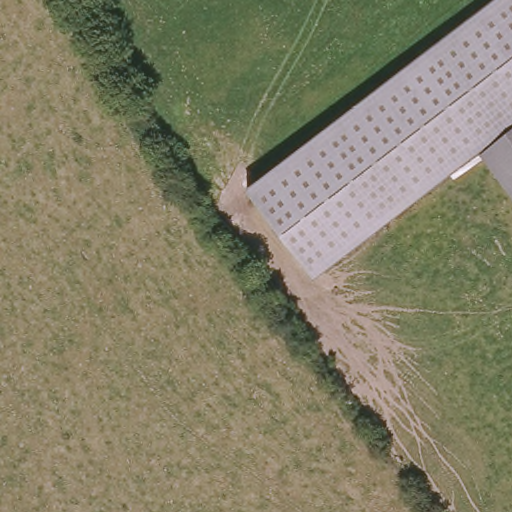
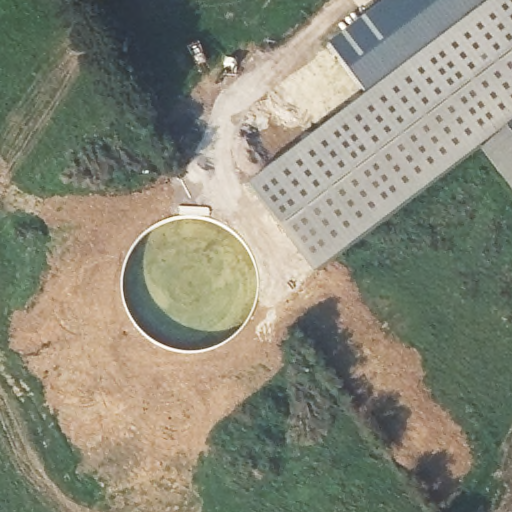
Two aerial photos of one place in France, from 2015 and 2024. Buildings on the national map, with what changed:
unchanged [(318,275),(247,186),(492,0),(512,0),(512,123),(474,150),(318,275)]
new [(387,0),(492,0),(367,95),(330,44),(387,0)]
unchanged [(512,123),(512,201),(474,150),(512,123)]

